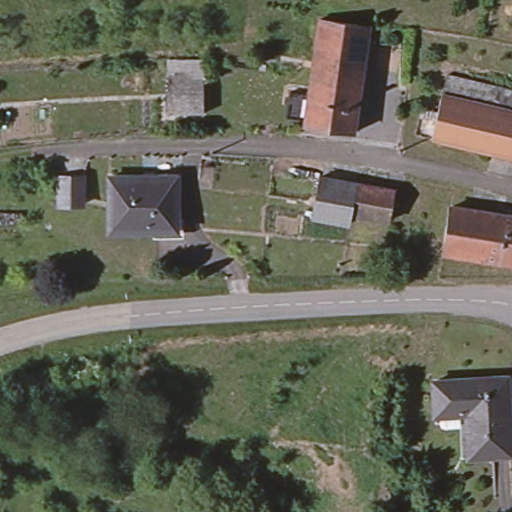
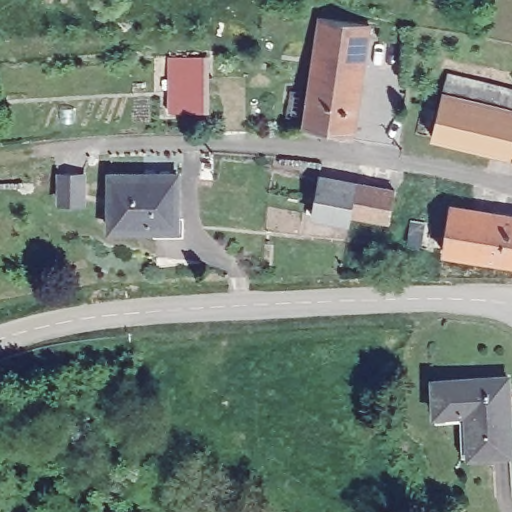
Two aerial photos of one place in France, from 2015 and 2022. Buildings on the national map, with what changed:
unchanged [(319,20),(367,27),(362,65),(313,60),(319,20)]
unchanged [(205,111),(164,110),(166,56),(207,54),(205,111)]
unchanged [(313,60),(362,65),(358,88),(310,81),(313,60)]
unchanged [(495,83),(491,102),(512,107),(512,154),(432,135),(442,91),(447,71),(495,83)]
unchanged [(310,81),(358,88),(352,133),(310,126),(304,125),(309,88),(310,81)]
unchanged [(321,169),(357,176),(352,206),(350,215),(314,209),(321,169)]
unchanged [(107,172),(175,173),(175,227),(115,227),(107,227),(107,220),(107,172)]
unchanged [(357,176),(397,184),(392,213),(352,206),(357,176)]
unchanged [(60,177),(85,178),(85,204),(60,204),(60,177)]
unchanged [(445,254),(448,232),(452,209),(495,215),(512,218),(512,265),(487,261),(445,254)]
unchanged [(461,418),(437,419),(437,411),(435,378),(510,374),(512,451),(470,453),(462,453),(461,418)]

